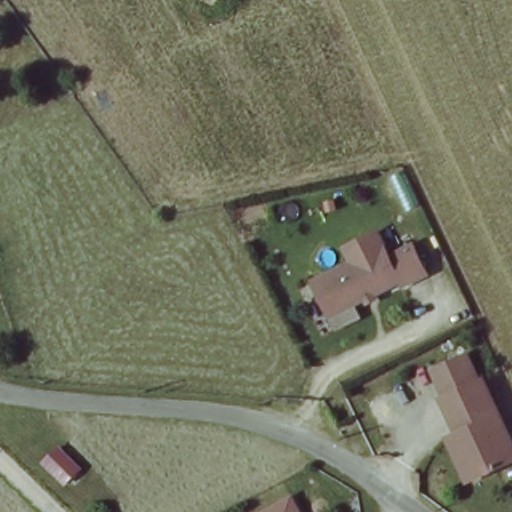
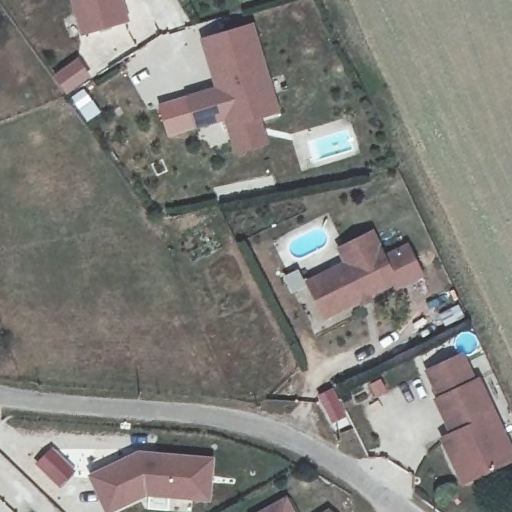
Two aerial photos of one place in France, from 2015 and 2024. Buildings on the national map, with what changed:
new [(122,0),(128,21),(81,35),(70,0),(122,0)]
new [(255,23),(280,114),(260,119),(268,144),(233,154),(223,120),(195,129),(185,95),(213,86),(200,38),(255,23)]
unchanged [(344,264),(337,250),(369,233),(383,259),(404,247),(419,275),(395,288),(392,282),(339,310),(335,303),(319,312),(305,284),(344,264)]
unchanged [(442,436),(451,431),(435,397),(439,395),(426,369),(459,353),(472,379),(476,377),(512,452),(512,454),(472,474),(463,479),(442,436)]
unchanged [(54,447),(76,469),(61,484),(37,463),(54,447)]
new [(136,451),(215,457),(211,501),(148,495),(112,512),(105,512),(88,474),(136,451)]
unchanged [(277,494),(287,512),(244,512),(277,494)]

